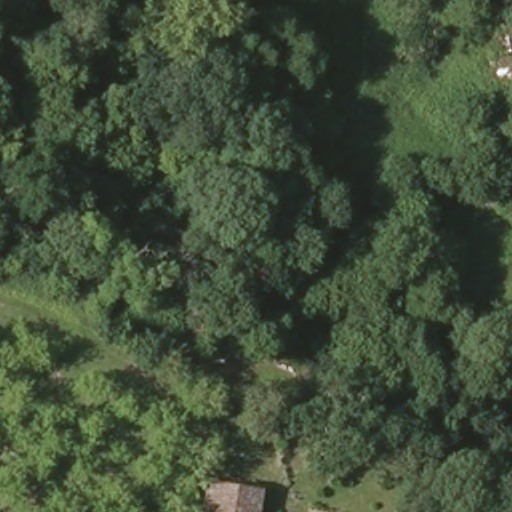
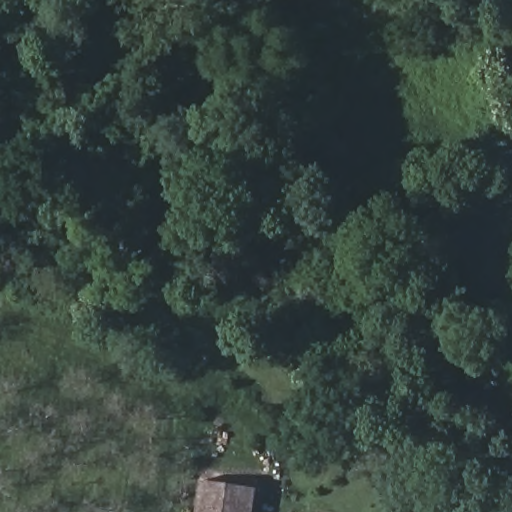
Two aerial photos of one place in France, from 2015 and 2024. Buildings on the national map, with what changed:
unchanged [(496,10),(512,6),(512,59),(510,59),(496,10)]
unchanged [(197,512),(199,482),(255,487),(254,512),(197,512)]

